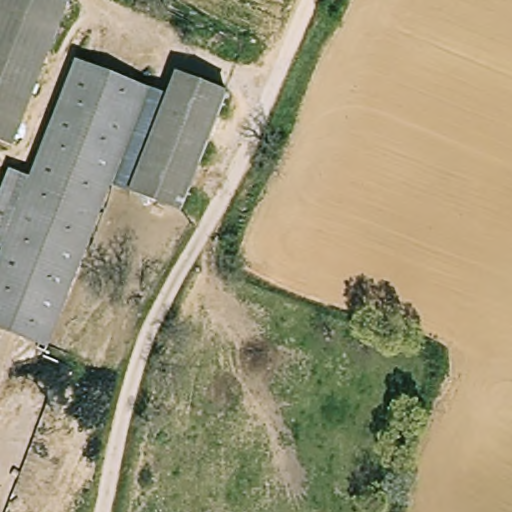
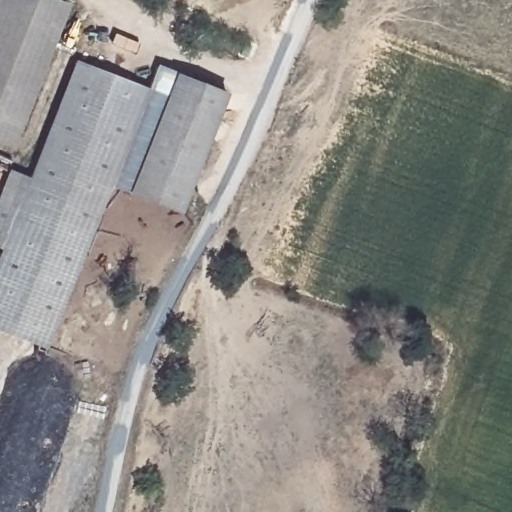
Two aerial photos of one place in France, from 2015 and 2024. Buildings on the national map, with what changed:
unchanged [(0,138),(0,0),(57,0),(61,1),(5,140),(0,138)]
unchanged [(79,265),(76,265),(21,337),(2,330),(0,329),(0,252),(7,235),(83,57),(146,84),(154,88),(97,221),(79,265)]
unchanged [(137,191),(186,72),(243,95),(191,215),(137,191)]
unchanged [(45,346),(21,337),(76,265),(79,265),(45,346)]

